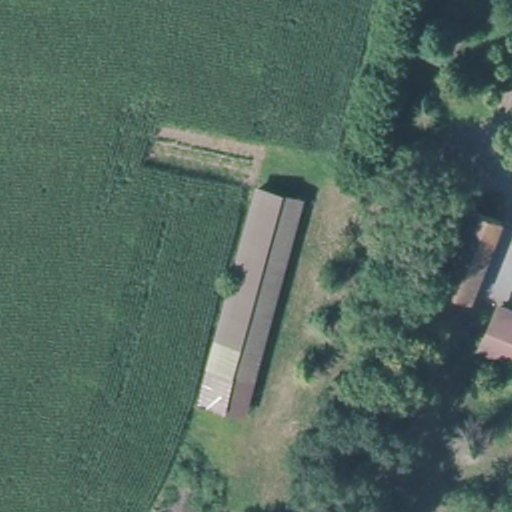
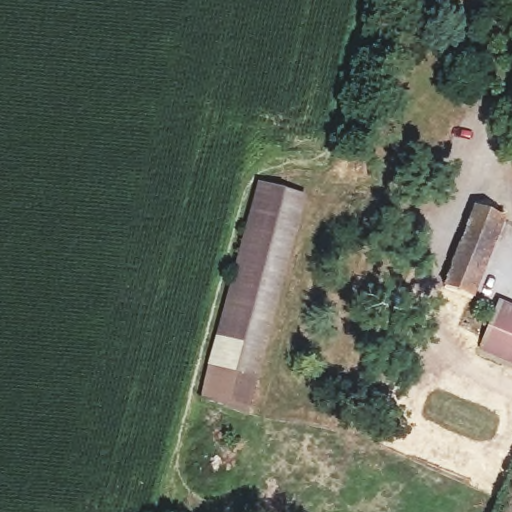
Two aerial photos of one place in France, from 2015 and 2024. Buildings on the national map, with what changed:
unchanged [(309,197),(252,414),(202,400),(261,184),(309,197)]
unchanged [(508,215),(476,296),(445,283),(477,205),(508,215)]
unchanged [(486,334),(500,303),(512,308),(512,362),(479,349),(486,334)]

